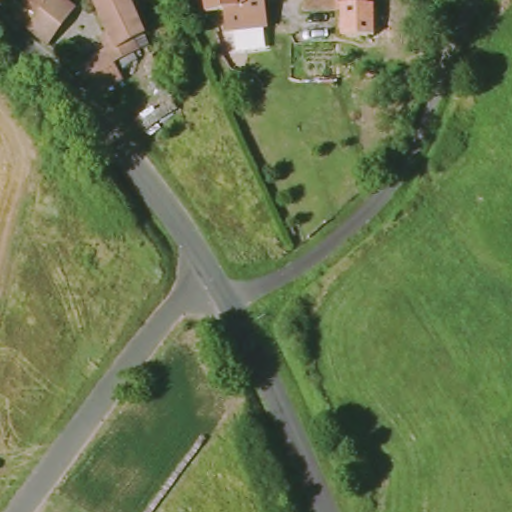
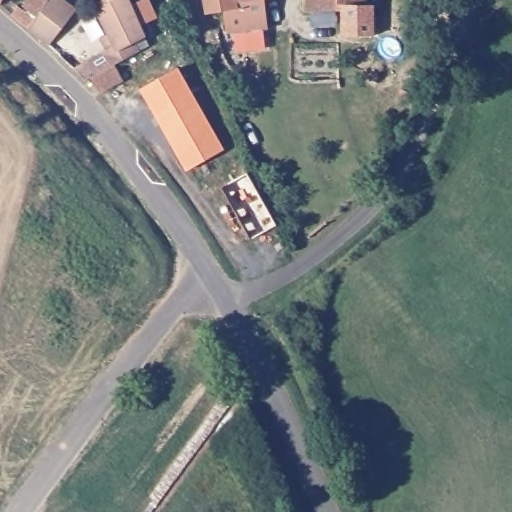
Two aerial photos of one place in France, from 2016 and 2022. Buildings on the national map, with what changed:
unchanged [(6,7),(10,0),(22,0),(60,0),(66,4),(46,46),(24,24),(6,7)]
unchanged [(98,85),(89,71),(82,75),(73,66),(111,46),(89,0),(128,0),(143,32),(134,36),(138,44),(110,59),(119,75),(98,85)]
unchanged [(220,29),(216,8),(200,11),(197,0),(257,0),(256,4),(260,25),(220,29)]
unchanged [(300,0),(335,0),(335,2),(300,0)]
unchanged [(364,27),(328,28),(335,2),(335,0),(364,0),(364,27)]
new [(142,88),(176,69),(222,150),(188,170),(142,88)]

